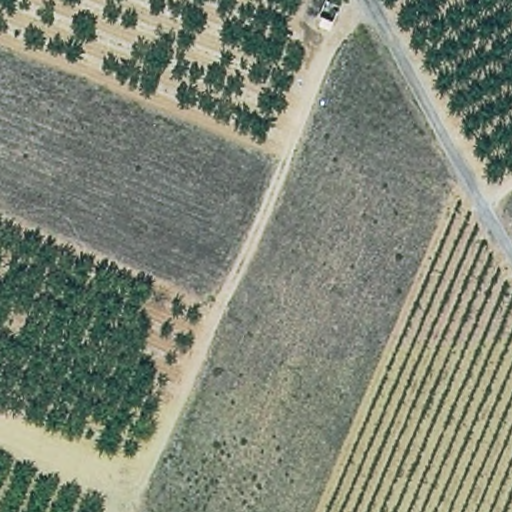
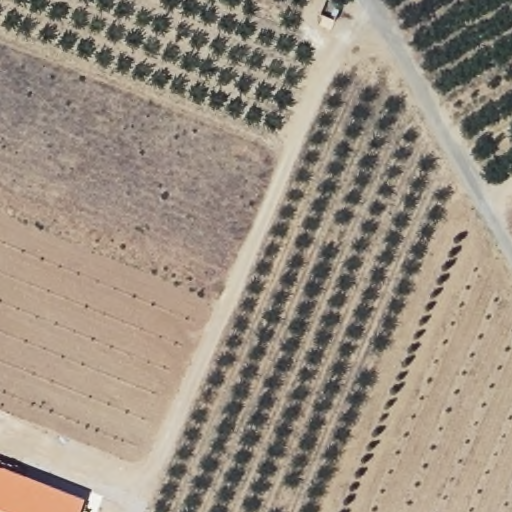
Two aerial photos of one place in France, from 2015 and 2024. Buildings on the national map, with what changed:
unchanged [(335,19),(317,13),(324,0),(344,0),(335,19)]
new [(77,512),(0,512),(0,467),(82,498),(77,512)]

